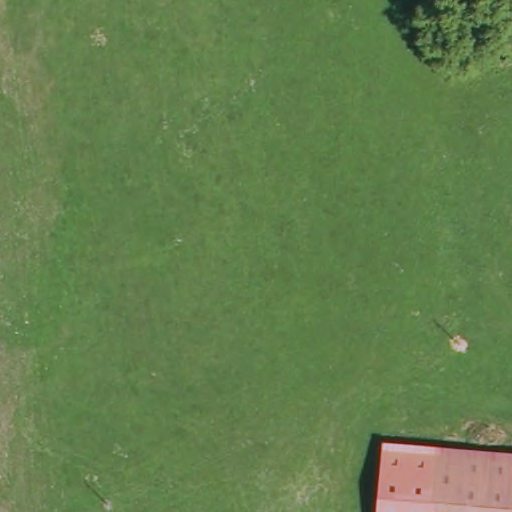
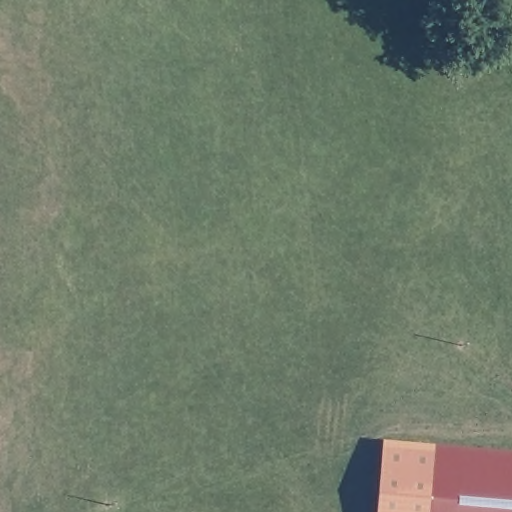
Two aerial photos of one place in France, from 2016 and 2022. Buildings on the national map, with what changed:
unchanged [(437,512),(377,512),(383,443),(444,448),(443,460),(437,512)]
unchanged [(512,455),(512,512),(437,512),(444,448),(512,455)]

